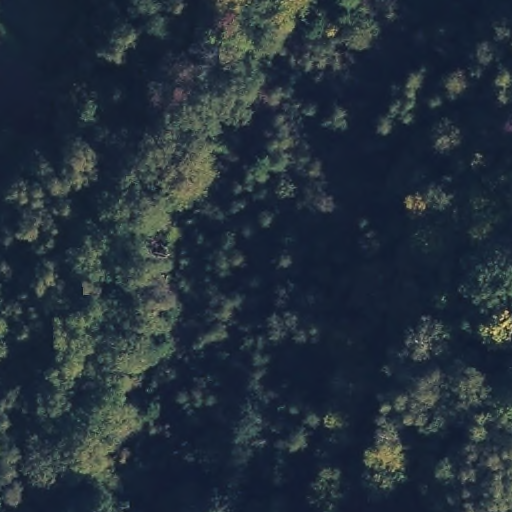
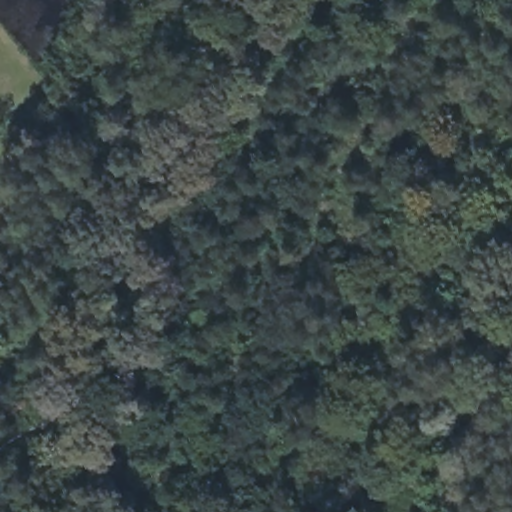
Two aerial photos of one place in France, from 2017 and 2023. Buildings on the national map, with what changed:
[]

